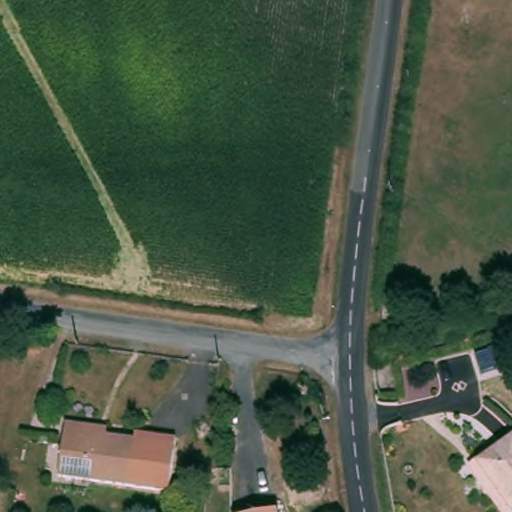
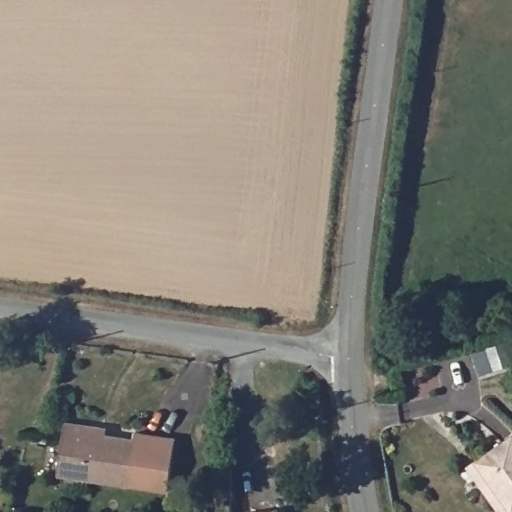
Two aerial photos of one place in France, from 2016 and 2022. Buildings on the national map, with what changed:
unchanged [(66,423),(101,427),(100,435),(135,440),(137,434),(179,440),(174,488),(61,476),(66,423)]
unchanged [(506,512),(504,512),(470,461),(478,456),(512,433),(512,508),(506,512)]
unchanged [(280,512),(262,512),(280,508),(280,512)]

